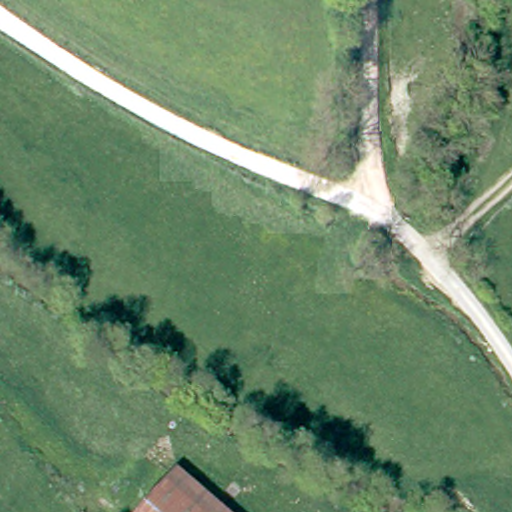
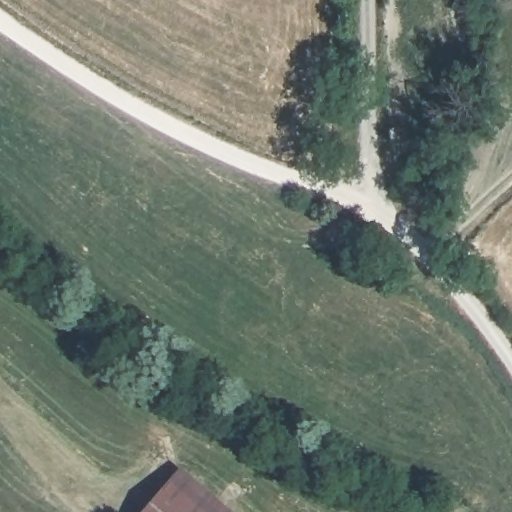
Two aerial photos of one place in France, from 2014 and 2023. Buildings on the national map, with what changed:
unchanged [(231,512),(139,512),(180,466),(231,512)]

